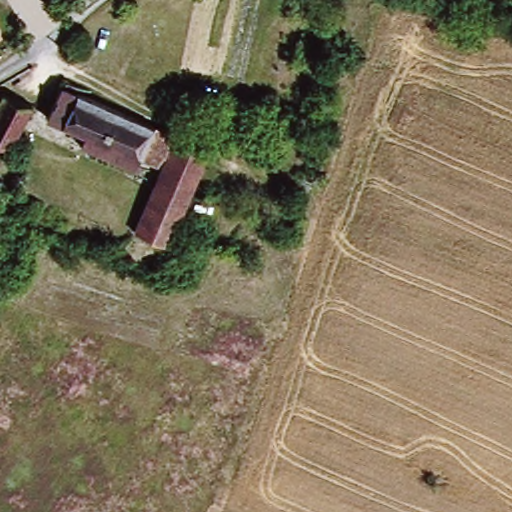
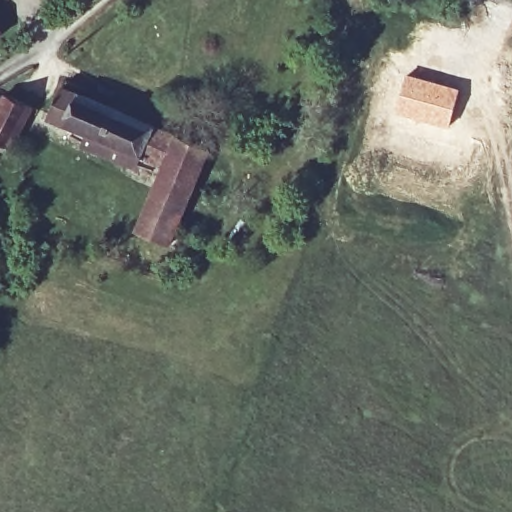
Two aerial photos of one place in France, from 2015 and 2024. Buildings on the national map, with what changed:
unchanged [(9,31),(0,37),(0,16),(9,31)]
new [(405,74),(460,89),(448,129),(394,112),(405,74)]
unchanged [(147,120),(216,151),(173,247),(143,235),(173,167),(146,154),(140,165),(88,141),(93,130),(50,119),(50,117),(59,85),(147,120)]
unchanged [(5,141),(2,150),(0,149),(0,121),(11,94),(39,105),(23,148),(5,141)]

